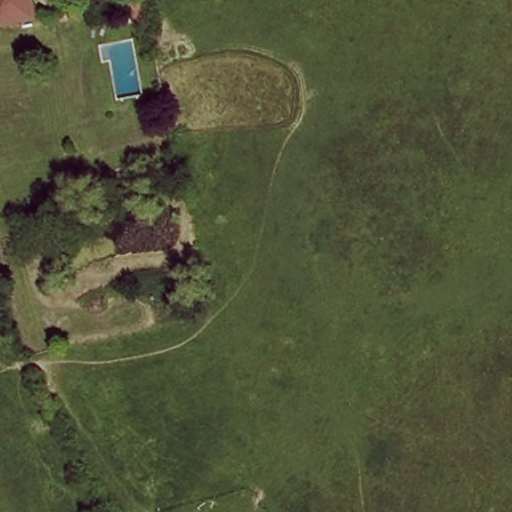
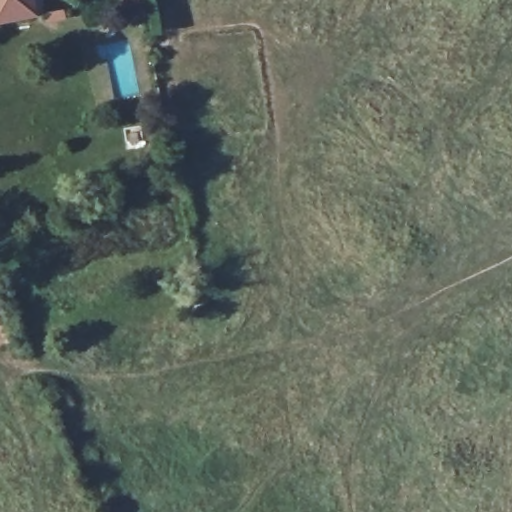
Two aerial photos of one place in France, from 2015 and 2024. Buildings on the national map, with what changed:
unchanged [(0,20),(0,0),(40,0),(42,11),(0,20)]
unchanged [(139,12),(139,16),(132,16),(130,9),(130,6),(125,7),(123,0),(145,0),(146,5),(147,11),(139,12)]

